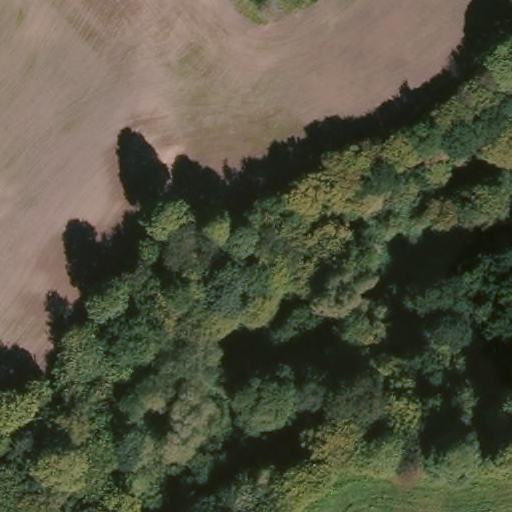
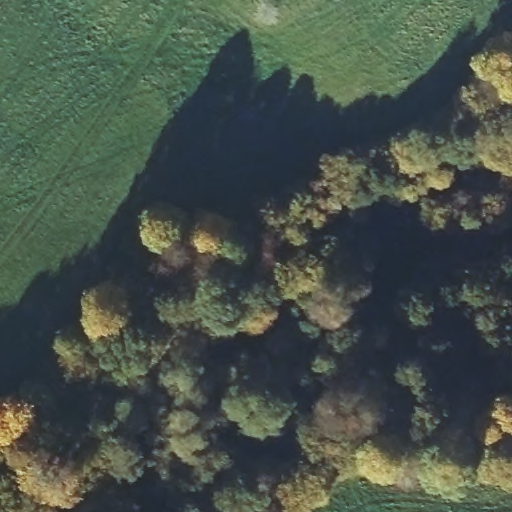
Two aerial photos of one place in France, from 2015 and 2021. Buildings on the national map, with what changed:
[]

